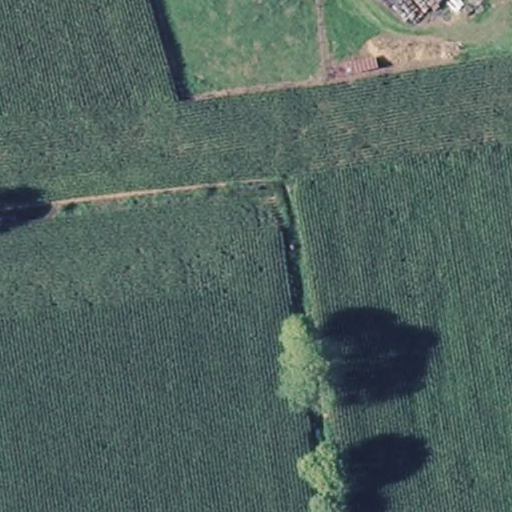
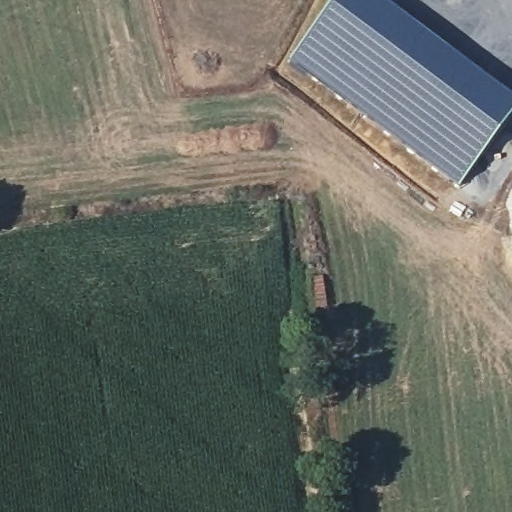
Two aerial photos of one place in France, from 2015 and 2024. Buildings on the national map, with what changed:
new [(331,7),(337,0),(380,0),(512,98),(512,118),(500,134),(458,190),(290,63),(331,7)]

